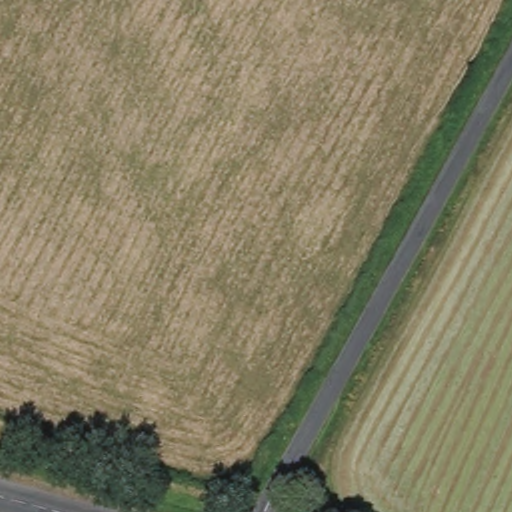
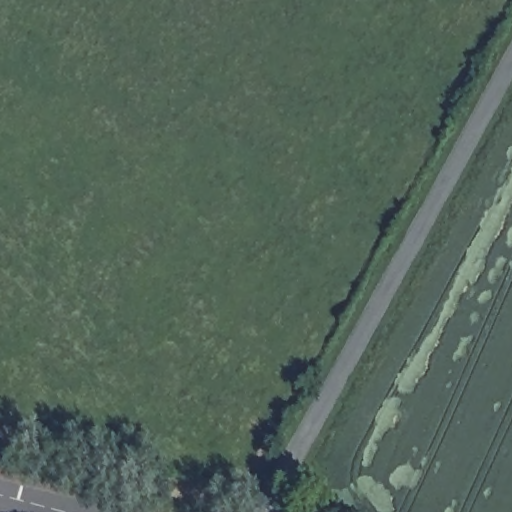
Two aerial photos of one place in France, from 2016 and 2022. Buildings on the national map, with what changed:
[]

